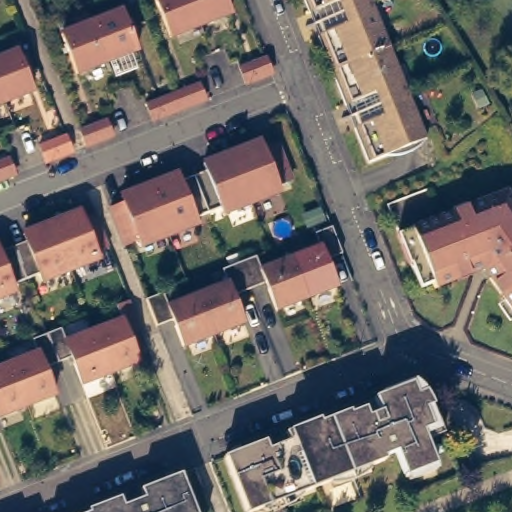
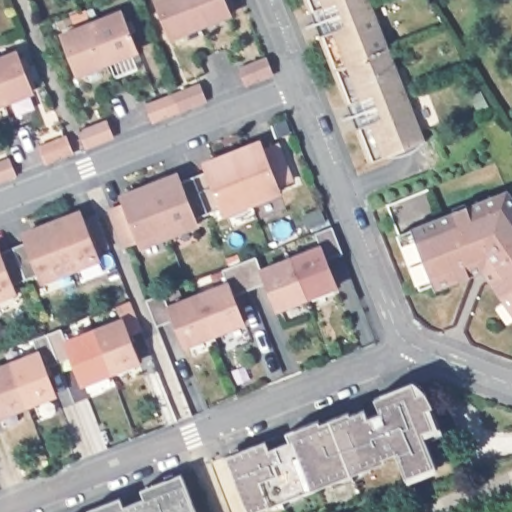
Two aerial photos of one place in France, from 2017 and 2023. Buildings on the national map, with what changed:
unchanged [(200,26),(170,38),(155,0),(190,0),(200,26)]
unchanged [(231,14),(200,26),(190,0),(225,0),(231,14)]
unchanged [(370,163),(333,71),(305,0),(370,0),(390,48),(425,141),(423,143),(422,145),(421,146),(418,147),(415,150),(411,152),(407,154),(405,155),(401,155),(398,156),(396,156),(395,157),(392,157),(390,157),(387,157),(386,156),(370,163)]
unchanged [(92,23),(122,12),(137,51),(107,62),(92,23)]
unchanged [(77,74),(61,35),(92,23),(107,62),(77,74)]
unchanged [(28,92),(0,103),(0,57),(12,52),(28,92)]
unchanged [(272,73),(245,84),(240,68),(266,57),(272,73)]
unchanged [(173,94),(200,84),(205,99),(180,110),(152,120),(146,104),(173,94)]
unchanged [(107,120),(113,136),(86,146),(80,130),(107,120)]
unchanged [(72,151),(46,162),(40,146),(66,136),(72,151)]
unchanged [(255,152),(258,159),(272,154),(286,191),(273,196),(275,202),(247,213),(227,163),(246,156),(255,152)]
unchanged [(15,174),(0,180),(0,162),(9,158),(15,174)]
unchanged [(218,225),(216,218),(203,223),(189,187),(201,182),(198,174),(208,170),(227,163),(247,213),(218,225)]
unchanged [(173,184),(176,192),(189,187),(203,223),(190,228),(193,235),(165,246),(145,195),(163,188),(173,184)]
unchanged [(512,207),(512,321),(496,298),(497,297),(478,270),(430,289),(427,284),(415,289),(405,265),(392,235),(434,219),(434,218),(478,200),(479,201),(502,192),(512,207)]
unchanged [(116,206),(125,203),(145,195),(165,246),(136,257),(133,251),(120,256),(106,219),(119,214),(116,206)]
unchanged [(81,212),(83,219),(97,214),(110,246),(96,252),(99,259),(70,270),(52,223),(71,216),(81,212)]
unchanged [(23,234),(33,231),(52,223),(70,270),(42,281),(39,274),(26,279),(13,247),(26,242),(23,234)]
unchanged [(343,253),(326,260),(337,286),(307,298),(301,284),(291,259),(321,247),(315,233),(332,227),(343,253)]
unchanged [(26,279),(12,284),(15,291),(0,298),(0,252),(13,247),(26,279)]
unchanged [(276,310),(266,283),(250,289),(240,263),(256,257),(262,271),(291,259),(301,284),(307,298),(276,310)]
unchanged [(228,284),(223,270),(240,263),(250,289),(234,296),(245,323),(214,334),(208,320),(198,295),(228,284)]
unchanged [(163,293),(169,307),(198,295),(208,320),(214,334),(183,346),(173,320),(157,326),(146,300),(163,293)]
unchanged [(95,332),(122,321),(117,307),(131,301),(142,330),(129,335),(140,361),(111,373),(95,332)]
unchanged [(111,373),(82,384),(72,357),(58,363),(47,334),(61,328),(67,342),(95,332),(111,373)]
unchanged [(58,363),(45,368),(55,394),(27,405),(11,364),(38,354),(33,339),(47,334),(58,363)]
unchanged [(0,416),(0,369),(11,364),(27,405),(0,416)]
unchanged [(269,510),(258,511),(257,509),(249,512),(242,512),(220,457),(248,446),(261,441),(265,450),(285,442),(281,433),(287,430),(313,420),(315,423),(344,412),(345,414),(350,412),(360,409),(363,417),(375,412),(370,398),(407,383),(410,382),(410,383),(412,384),(414,385),(415,386),(417,389),(420,392),(425,399),(425,400),(427,406),(420,409),(428,428),(417,432),(421,441),(431,467),(430,467),(432,471),(403,482),(402,478),(401,478),(391,452),(378,457),(380,461),(365,466),(367,468),(358,476),(348,481),(337,484),(326,484),(325,482),(298,493),(298,494),(290,502),(280,507),(269,510)]
unchanged [(115,503),(119,511),(140,503),(136,494),(148,490),(176,479),(189,512),(92,512),(110,505),(115,503)]

